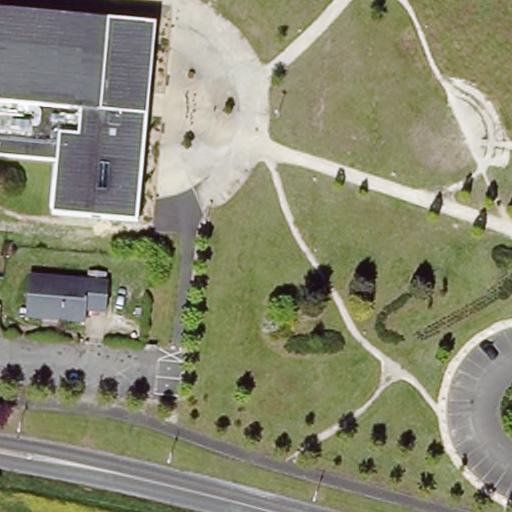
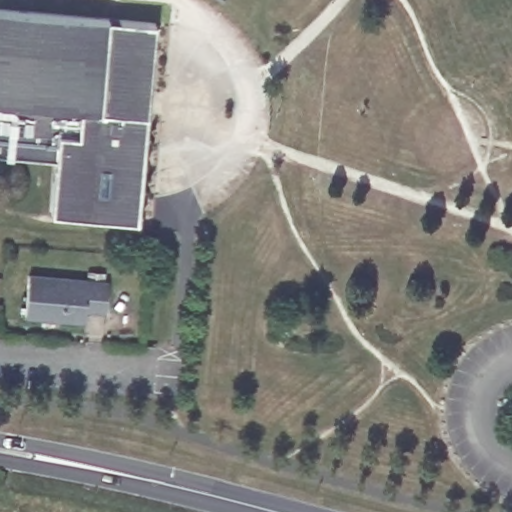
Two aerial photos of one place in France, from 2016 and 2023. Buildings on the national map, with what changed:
unchanged [(140,220),(52,211),(57,157),(0,153),(0,9),(107,20),(155,22),(140,220)]
unchanged [(104,283),(101,311),(81,310),(80,322),(21,317),(24,276),(104,283)]

